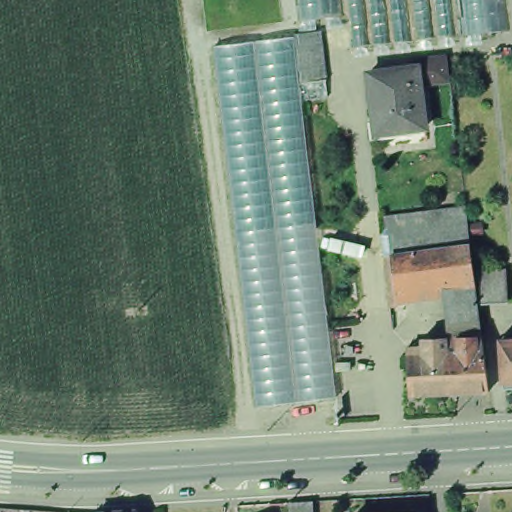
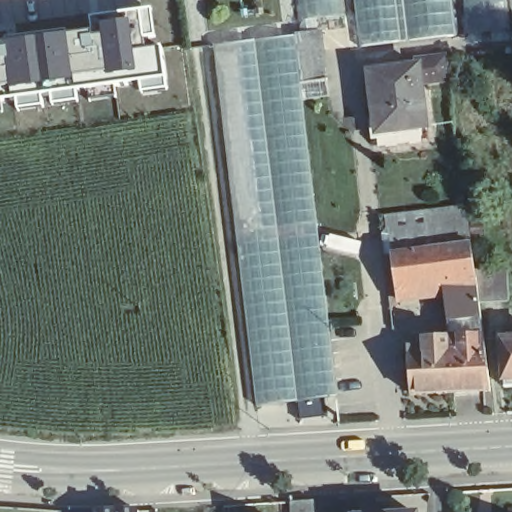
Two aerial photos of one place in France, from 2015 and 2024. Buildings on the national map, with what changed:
unchanged [(512,27),(341,47),(337,16),(305,23),(302,0),(512,0),(512,16),(512,27)]
new [(90,20),(87,6),(143,1),(157,81),(0,104),(0,31),(90,20)]
unchanged [(300,37),(325,34),(328,56),(332,84),(306,87),(300,37)]
unchanged [(333,396),(247,403),(211,48),(300,37),(333,396)]
unchanged [(378,142),(377,129),(370,69),(419,63),(427,123),(428,136),(378,142)]
unchanged [(467,209),(470,239),(472,245),(430,251),(425,212),(467,207),(467,209)]
unchanged [(425,212),(430,251),(395,255),(390,216),(425,212)]
unchanged [(453,337),(447,298),(397,304),(398,307),(392,308),(385,256),(392,255),(395,255),(430,251),(472,245),(473,263),(475,273),(507,272),(508,303),(478,303),(483,336),(453,337)]
unchanged [(423,354),(423,339),(447,338),(453,337),(483,336),(483,342),(497,340),(500,368),(487,370),(490,391),(450,393),(411,395),(409,355),(423,354)]
unchanged [(505,382),(503,382),(501,341),(512,341),(512,389),(505,389),(505,382)]
unchanged [(290,501),(315,500),(315,512),(291,512),(290,501)]

